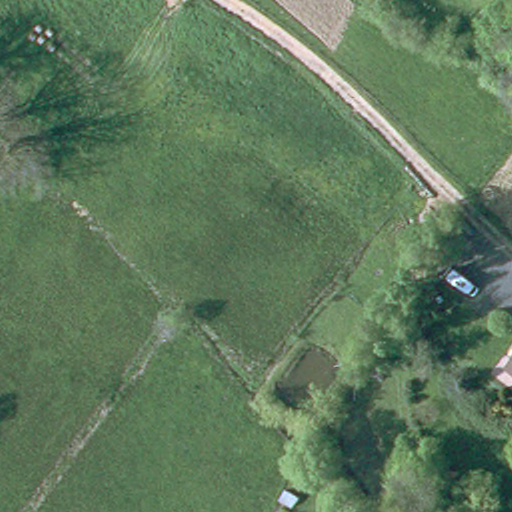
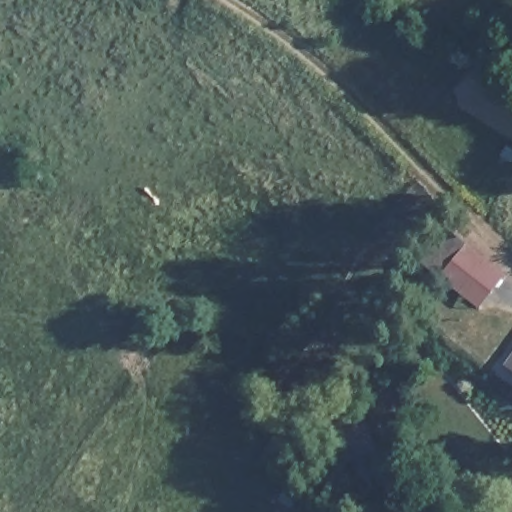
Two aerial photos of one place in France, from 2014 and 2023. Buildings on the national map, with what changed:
new [(505,274),(479,307),(440,277),(424,265),(451,232),(466,244),(505,274)]
unchanged [(510,366),(512,364),(512,368),(510,366)]

